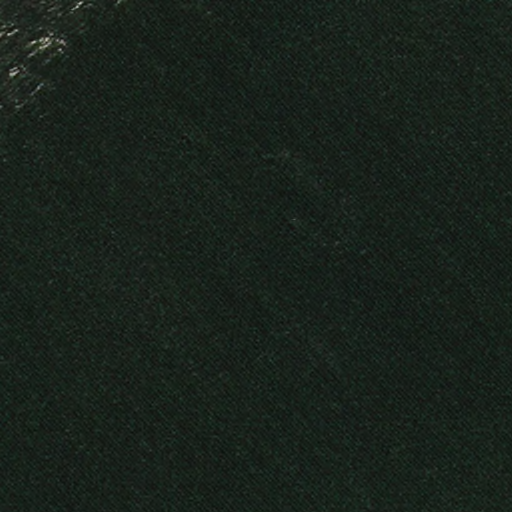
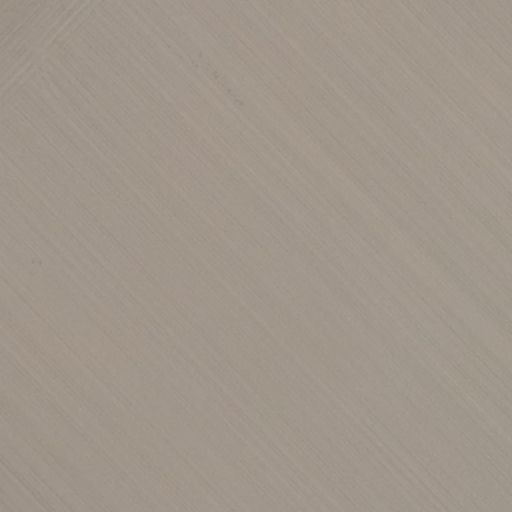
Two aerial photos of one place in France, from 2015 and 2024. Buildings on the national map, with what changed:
[]

